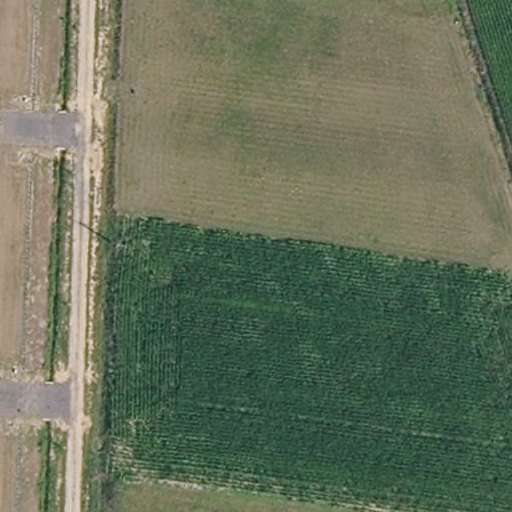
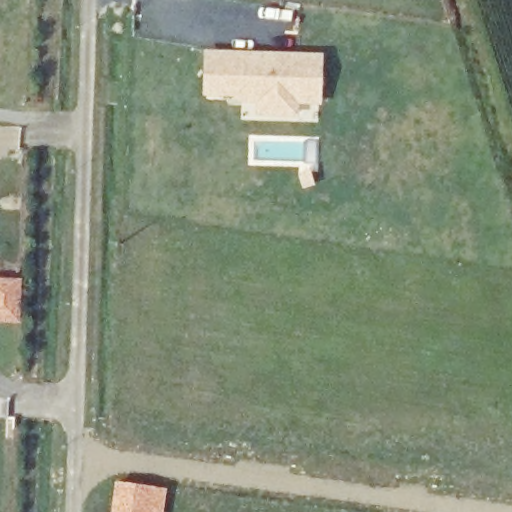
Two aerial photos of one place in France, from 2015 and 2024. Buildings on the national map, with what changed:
new [(204,99),(205,51),(322,53),(321,105),(299,105),(299,117),(255,116),(256,104),(204,99)]
new [(0,278),(21,279),(20,324),(0,323),(0,278)]
new [(115,480),(167,489),(163,512),(111,512),(115,480)]

